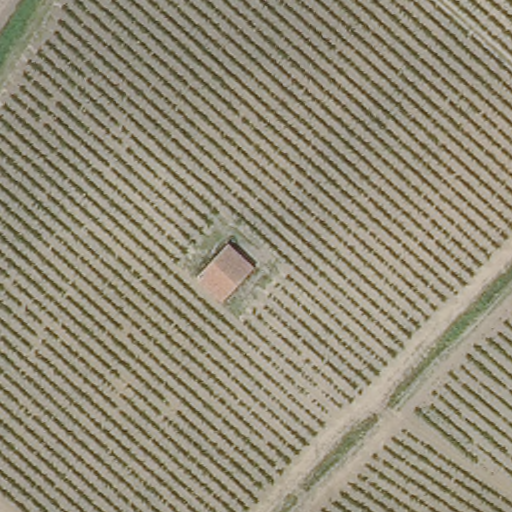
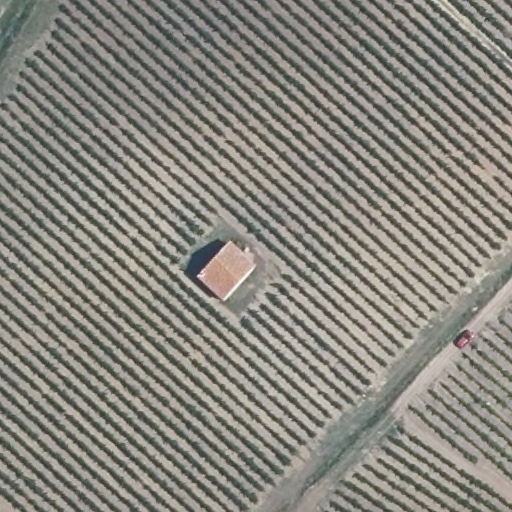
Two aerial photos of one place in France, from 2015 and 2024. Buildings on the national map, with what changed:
unchanged [(227,295),(207,273),(237,242),(258,261),(227,295)]

